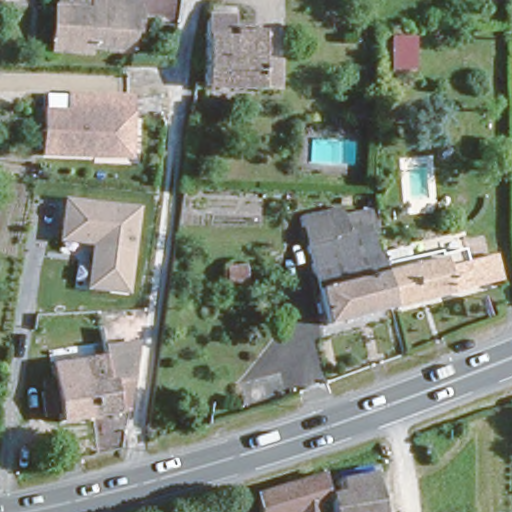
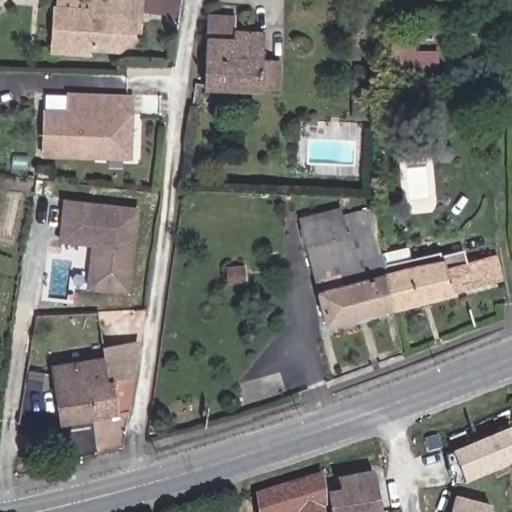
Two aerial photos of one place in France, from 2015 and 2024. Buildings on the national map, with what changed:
unchanged [(114,55),(84,53),(84,58),(47,56),(50,12),(87,15),(88,0),(95,0),(137,3),(136,18),(135,35),(129,35),(129,42),(114,55)]
unchanged [(262,60),(280,61),(279,89),(206,86),(207,16),(236,17),(235,30),(263,32),(262,60)]
unchanged [(415,67),(391,68),(391,38),(415,38),(415,67)]
unchanged [(47,155),(49,111),(72,112),(72,94),(110,96),(132,97),(137,97),(137,102),(137,114),(135,158),(107,157),(100,157),(47,155)]
unchanged [(368,117),(354,117),(354,101),(368,101),(368,117)]
unchanged [(142,206),(132,296),(86,291),(92,246),(59,244),(63,197),(142,206)]
unchanged [(348,229),(306,240),(300,216),(342,206),(345,216),(348,229)]
unchanged [(378,248),(381,248),(385,267),(393,302),(326,320),(306,240),(348,229),(345,216),(360,213),(376,211),(378,227),(380,247),(378,248)]
unchanged [(467,257),(496,249),(502,274),(393,302),(385,267),(387,266),(386,260),(440,247),(441,252),(465,246),(467,257)]
unchanged [(246,281),(228,283),(227,267),(245,265),(246,281)]
unchanged [(61,422),(59,413),(45,415),(41,393),(44,392),(42,381),(54,379),(51,364),(70,361),(67,346),(91,343),(91,346),(96,346),(95,340),(101,340),(102,345),(102,346),(139,340),(138,345),(135,367),(134,376),(129,411),(92,417),(61,422)]
unchanged [(13,417),(3,415),(5,400),(15,402),(13,417)]
new [(512,467),(470,485),(466,475),(455,478),(451,457),(457,454),(512,432),(512,467)]
unchanged [(332,512),(328,494),(342,491),(338,472),(373,465),(383,512),(332,512)]
unchanged [(275,484),(322,469),(325,512),(294,512),(260,512),(257,489),(275,484)]
new [(496,507),(494,512),(455,512),(459,498),(496,507)]

